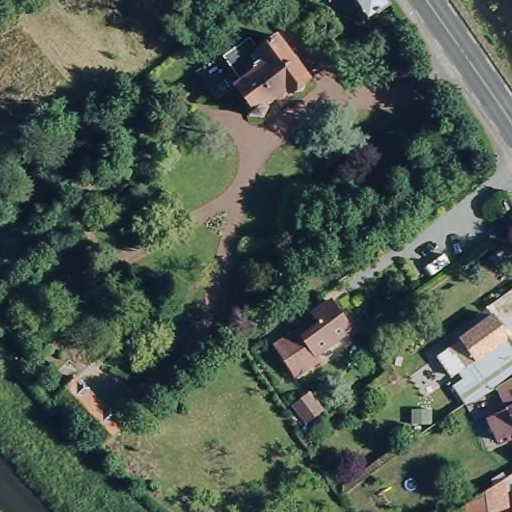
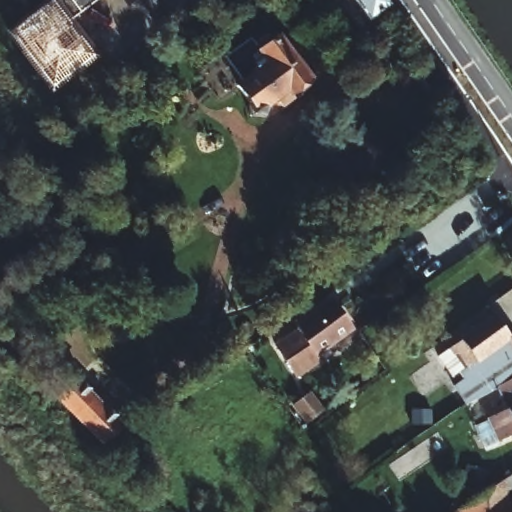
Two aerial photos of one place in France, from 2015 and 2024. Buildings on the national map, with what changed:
new [(70,20),(97,55),(52,89),(5,33),(48,0),(96,0),(70,20)]
unchanged [(389,4),(367,20),(353,0),(386,0),(389,4)]
unchanged [(315,88),(315,89),(317,90),(313,97),(305,99),(302,100),(301,98),(298,100),(299,101),(302,105),(300,106),(292,113),(289,109),(286,105),(275,113),(277,115),(275,117),(270,123),(258,122),(260,112),(246,93),(261,83),(257,78),(265,73),(257,63),(238,76),(225,58),(243,45),(237,37),(246,30),(264,53),(280,41),(284,45),(287,43),(318,84),(315,87),(315,88)]
unchanged [(295,331),(293,327),(330,301),(350,330),(317,355),(320,359),(297,375),(275,345),(295,331)]
unchanged [(468,428),(458,413),(468,407),(463,399),(473,392),(444,352),(494,316),(512,341),(512,378),(497,388),(482,398),(490,414),(468,428)]
unchanged [(501,439),(491,417),(507,409),(497,388),(512,378),(512,435),(501,439)]
unchanged [(73,379),(98,405),(100,404),(120,423),(118,425),(120,427),(100,447),(53,399),(73,379)]
unchanged [(497,499),(500,512),(453,512),(512,474),(512,489),(497,499)]

